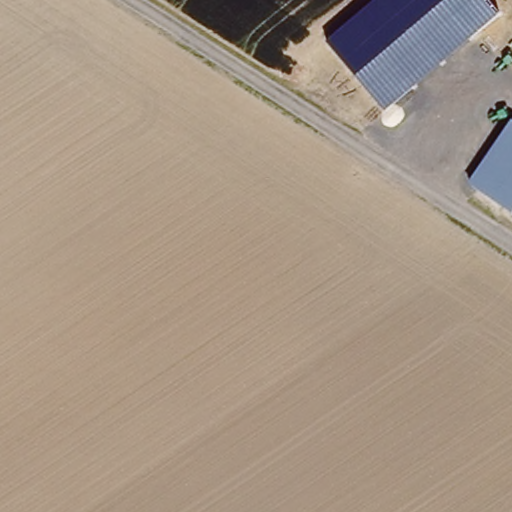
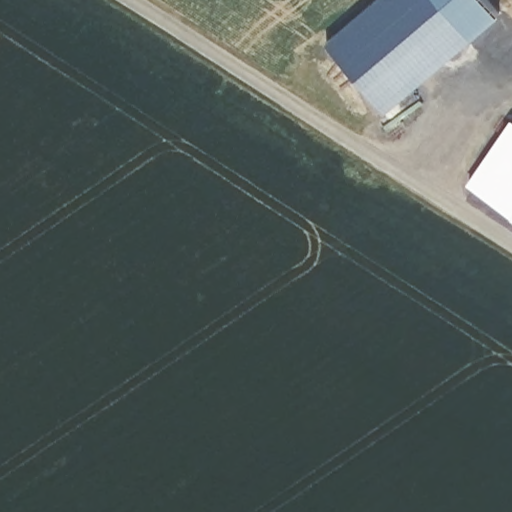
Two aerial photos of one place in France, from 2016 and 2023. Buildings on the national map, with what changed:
unchanged [(387,112),(326,43),(376,0),(488,0),(500,14),(387,112)]
unchanged [(483,164),(510,125),(512,126),(512,186),(493,213),(460,191),(483,164)]
unchanged [(512,186),(512,225),(493,213),(512,186)]

